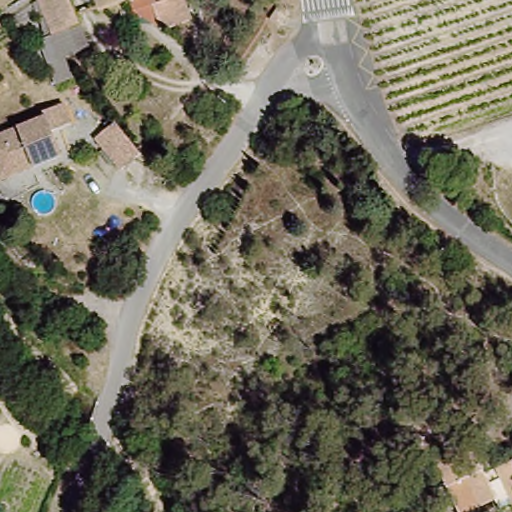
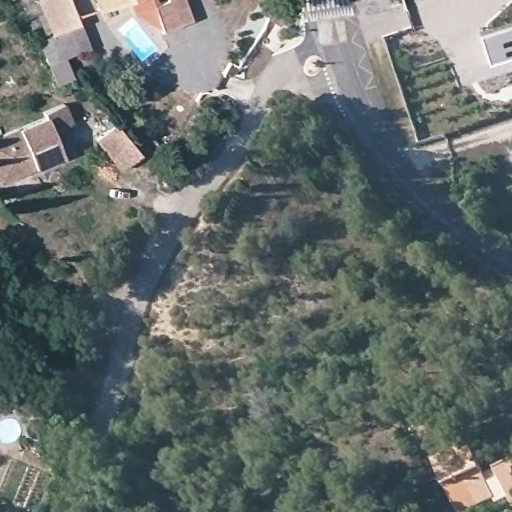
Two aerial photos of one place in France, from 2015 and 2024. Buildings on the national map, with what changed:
unchanged [(92,27),(58,52),(31,4),(41,0),(76,0),(92,27)]
unchanged [(94,9),(92,0),(126,0),(94,9)]
unchanged [(128,0),(181,0),(188,24),(159,31),(131,14),(128,0)]
new [(512,26),(512,59),(489,67),(479,37),(512,26)]
unchanged [(47,115),(44,111),(63,101),(74,122),(56,132),(65,152),(2,183),(0,179),(0,137),(3,136),(47,115)]
unchanged [(125,171),(98,140),(118,123),(146,155),(125,171)]
unchanged [(476,512),(459,512),(438,474),(472,458),(496,503),(476,512)]
unchanged [(500,480),(512,475),(512,504),(500,480)]

